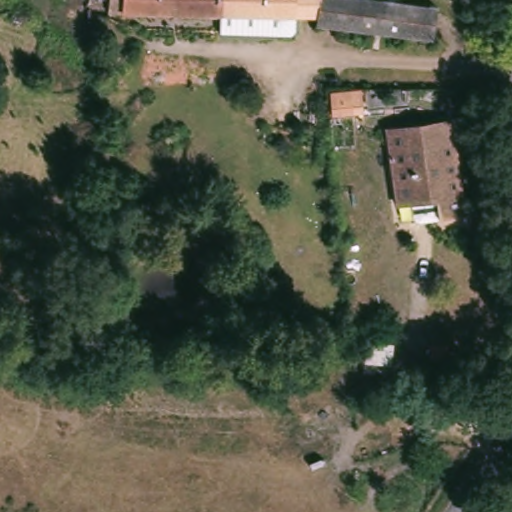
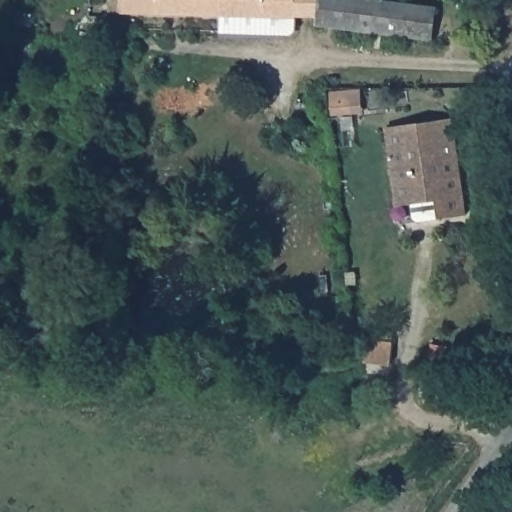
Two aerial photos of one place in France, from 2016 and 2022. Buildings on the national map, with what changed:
unchanged [(109,6),(110,0),(215,0),(215,10),(109,6)]
unchanged [(293,14),(215,10),(215,0),(294,0),(293,14)]
unchanged [(379,4),(378,36),(313,30),(313,11),(308,9),(308,0),(343,0),(368,2),(379,4)]
unchanged [(435,7),(434,40),(378,36),(379,4),(435,7)]
unchanged [(429,216),(426,199),(389,205),(380,130),(447,120),(457,210),(429,216)]

